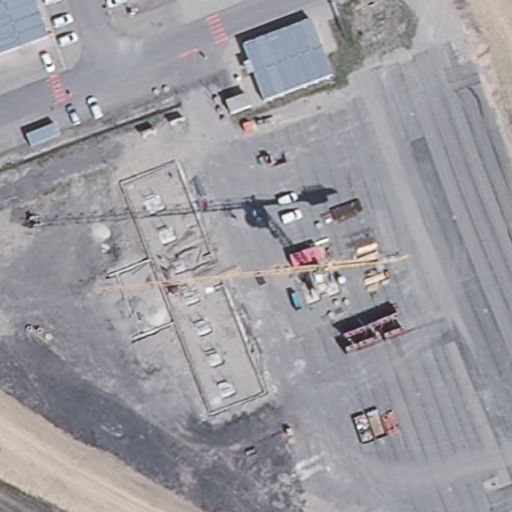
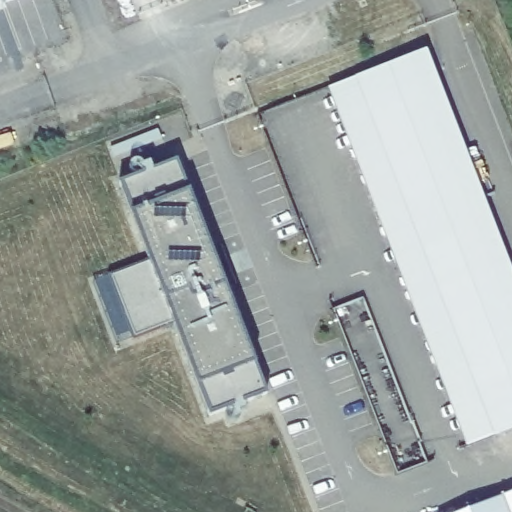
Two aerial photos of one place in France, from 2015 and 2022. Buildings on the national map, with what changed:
demolished [(48,39),(0,58),(0,0),(34,0),(48,39)]
demolished [(314,22),(332,77),(268,102),(244,45),(314,22)]
new [(512,272),(512,429),(466,445),(328,88),(426,49),(512,272)]
new [(148,260),(118,183),(176,160),(267,394),(210,416),(174,324),(140,337),(115,273),(148,260)]
new [(115,273),(140,337),(118,346),(93,281),(115,273)]
new [(455,512),(512,491),(512,512),(455,512)]

